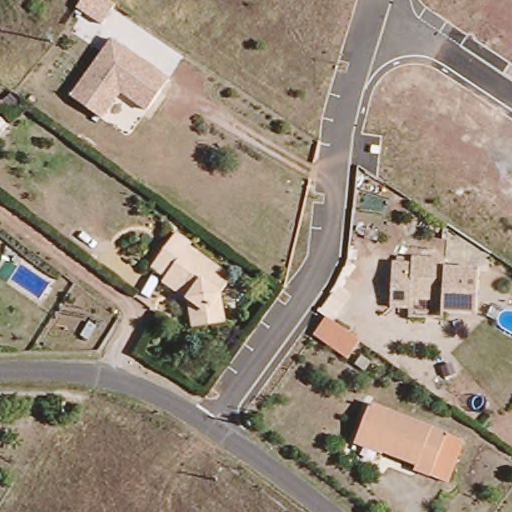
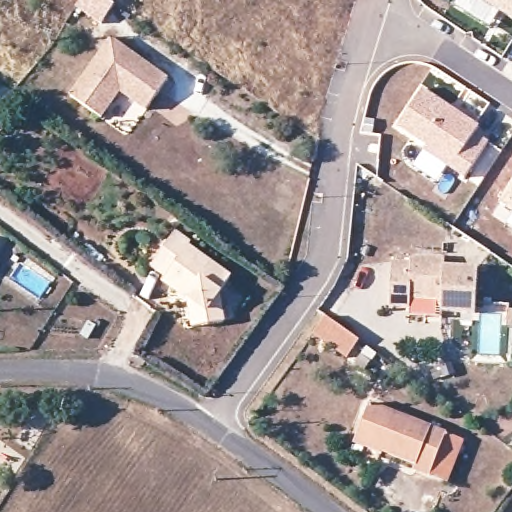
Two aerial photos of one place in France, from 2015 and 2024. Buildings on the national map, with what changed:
new [(84,0),(100,0),(116,10),(103,30),(77,11),(84,0)]
unchanged [(484,1),(484,0),(512,0),(512,18),(484,1)]
unchanged [(103,119),(72,96),(112,40),(170,81),(148,112),(121,93),(118,97),(103,119)]
new [(467,179),(425,151),(428,147),(400,128),(424,91),(481,129),(477,135),(490,144),(467,179)]
new [(492,214),(512,182),(512,227),(492,214)]
unchanged [(195,326),(193,304),(161,280),(165,275),(155,266),(179,234),(196,246),(198,241),(237,272),(227,287),(232,322),(195,326)]
unchanged [(396,261),(396,255),(411,256),(445,258),(445,267),(478,270),(476,316),(441,314),(442,302),(410,300),(410,310),(390,308),(392,261),(396,261)]
unchanged [(345,360),(312,336),(325,315),(357,340),(345,360)]
unchanged [(361,371),(352,365),(357,358),(366,363),(361,371)]
unchanged [(441,485),(427,476),(426,479),(381,455),(353,442),(357,432),(370,399),(445,434),(458,441),(441,485)]

